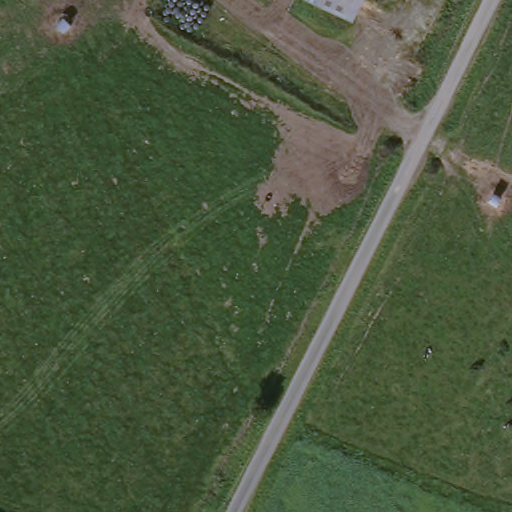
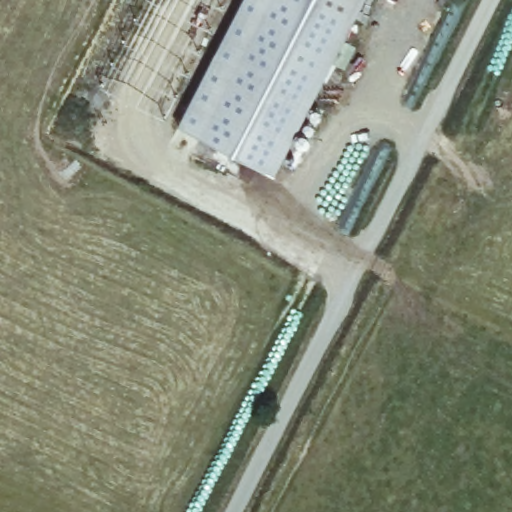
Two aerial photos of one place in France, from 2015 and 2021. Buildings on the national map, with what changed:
new [(274,177),(178,126),(242,0),(364,0),(274,177)]

